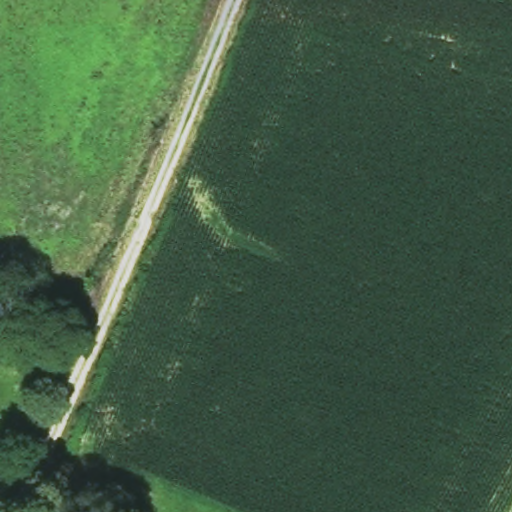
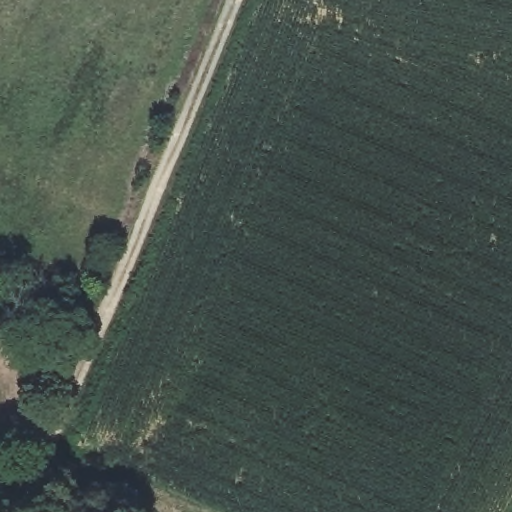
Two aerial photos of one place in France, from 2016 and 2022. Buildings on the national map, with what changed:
unchanged [(16,501),(2,512),(0,512),(0,482),(16,501)]

